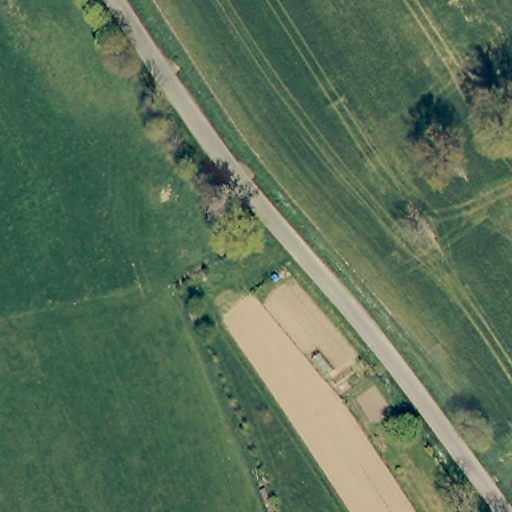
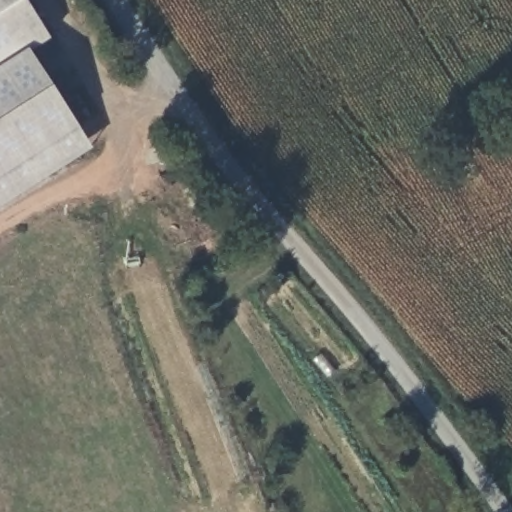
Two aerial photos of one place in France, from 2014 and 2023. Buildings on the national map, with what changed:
new [(31,51),(94,148),(0,208),(0,0),(27,0),(52,38),(31,51)]

